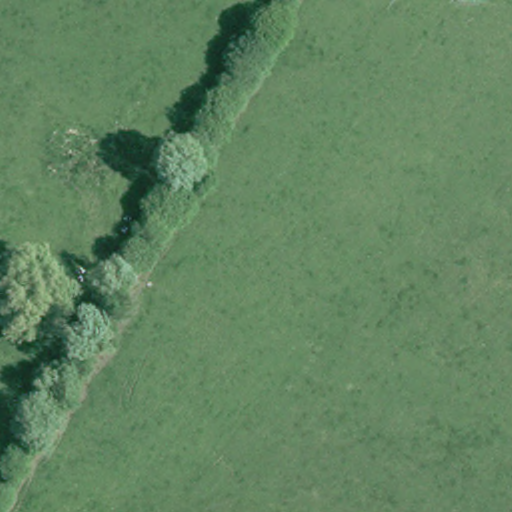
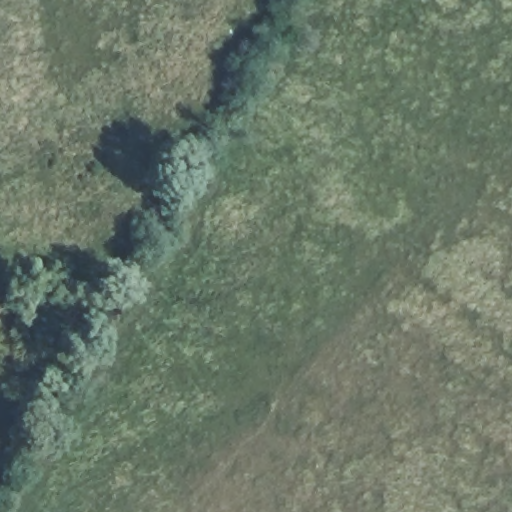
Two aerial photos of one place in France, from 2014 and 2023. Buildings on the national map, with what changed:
[]

